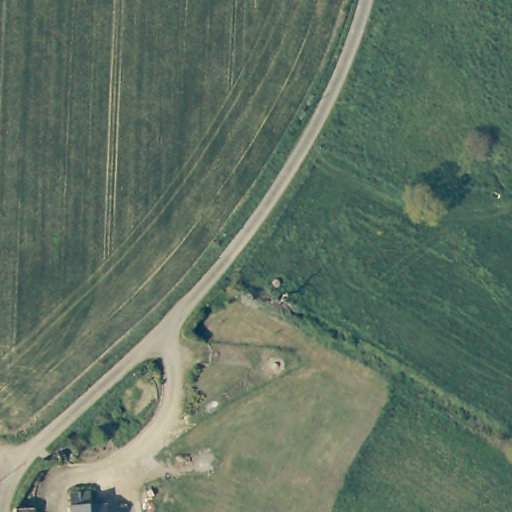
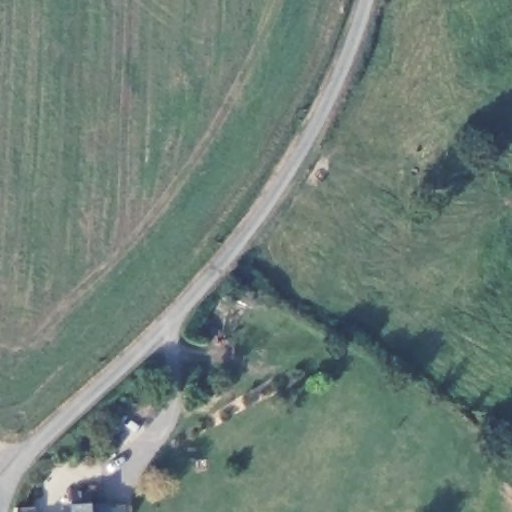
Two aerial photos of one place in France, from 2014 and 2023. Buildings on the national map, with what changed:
unchanged [(73,492),(93,492),(94,512),(73,512),(73,492)]
unchanged [(12,510),(33,511),(33,512),(12,512),(12,510)]

